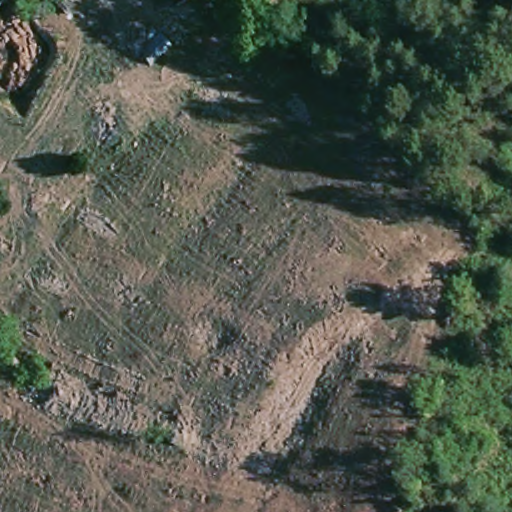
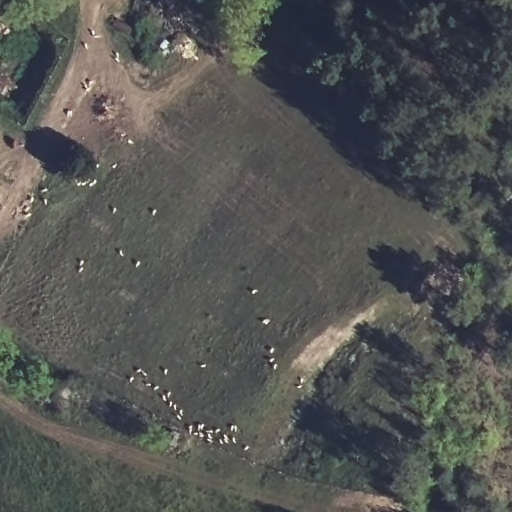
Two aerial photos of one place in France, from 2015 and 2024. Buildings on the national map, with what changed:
[]

